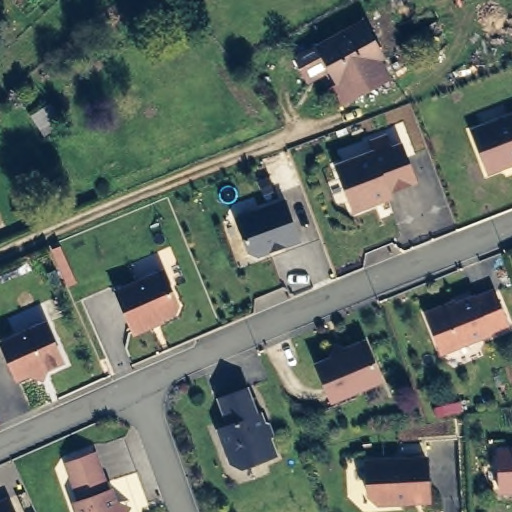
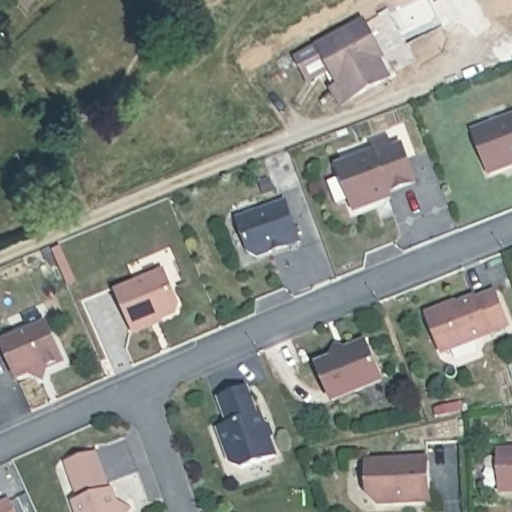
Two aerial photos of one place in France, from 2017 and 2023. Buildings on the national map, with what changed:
unchanged [(298,61),(319,49),(364,25),(383,60),(379,62),(388,79),(352,98),(343,81),(337,84),(331,72),(309,83),(298,61)]
unchanged [(492,173),(476,134),(512,119),(512,165),(492,173)]
unchanged [(417,180),(392,190),(393,194),(359,208),(341,166),(376,153),(371,144),(390,136),(395,149),(403,145),(417,180)]
unchanged [(289,201),(303,240),(288,246),(287,244),(261,256),(253,253),(241,219),(289,201)]
unchanged [(177,305),(173,314),(134,330),(118,293),(163,272),(177,305)]
unchanged [(446,354),(428,316),(446,308),(448,312),(494,293),(509,327),(446,354)]
unchanged [(62,362),(43,370),(40,367),(17,376),(3,342),(45,324),(62,362)]
unchanged [(350,352),(364,345),(381,383),(334,404),(319,369),(351,354),(350,352)]
unchanged [(231,465),(218,431),(228,427),(219,399),(244,389),(256,417),(259,416),(274,458),(241,471),(231,465)]
unchanged [(502,490),(499,449),(512,448),(512,490),(502,490)]
unchanged [(95,454),(109,491),(111,491),(119,512),(78,512),(74,504),(79,502),(66,464),(95,454)]
unchanged [(431,504),(398,506),(397,503),(376,502),(370,496),(369,464),(428,461),(431,504)]
unchanged [(0,501),(7,499),(13,512),(0,512),(0,501)]

